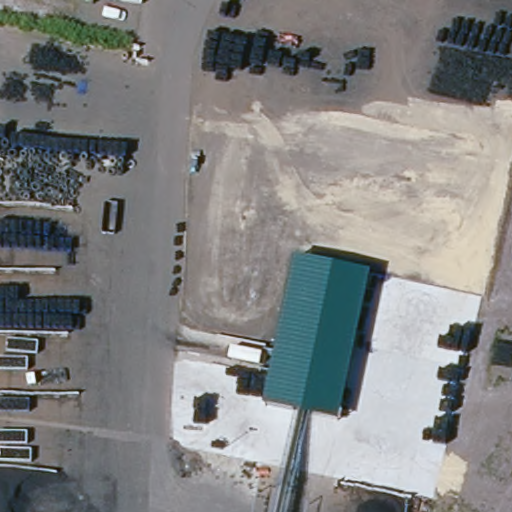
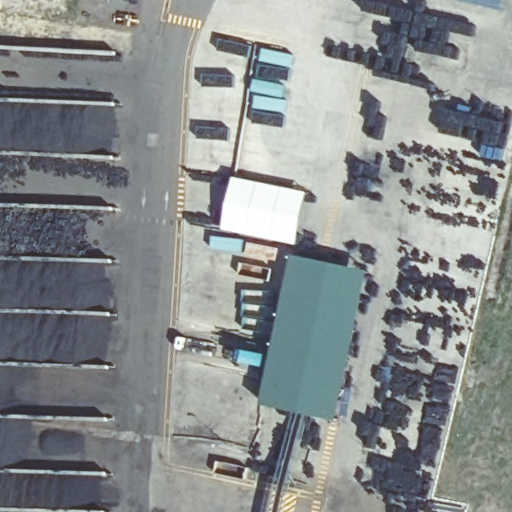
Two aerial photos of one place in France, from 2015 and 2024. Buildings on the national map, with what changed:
new [(214,234),(231,237),(231,233),(222,230),(234,175),(310,192),(298,246),(247,236),(243,254),(212,249),(214,234)]
unchanged [(264,406),(296,255),(371,272),(339,422),(264,406)]

